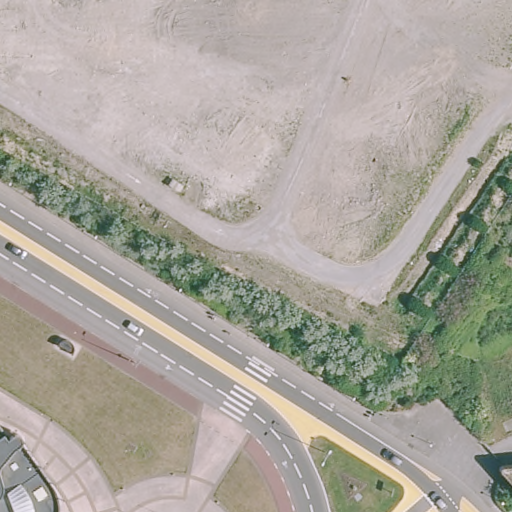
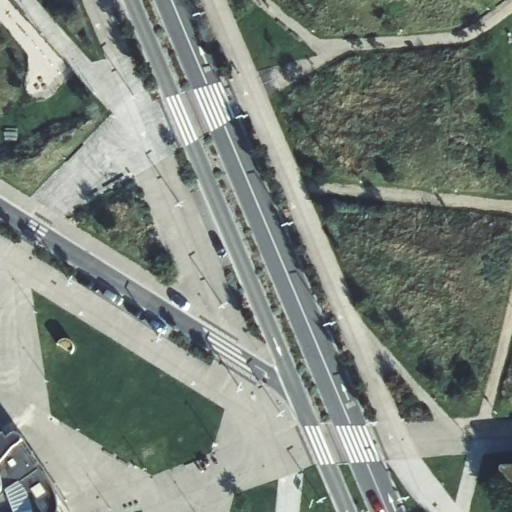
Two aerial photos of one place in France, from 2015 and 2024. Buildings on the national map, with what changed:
unchanged [(61,344),(63,342),(65,342),(74,347),(75,349),(75,352),(74,354),(72,357),(58,348),(61,344)]
unchanged [(0,431),(4,436),(15,438),(51,498),(53,503),(55,508),(55,512),(31,512),(0,493),(0,431)]
unchanged [(0,493),(31,512),(0,512),(0,493)]

